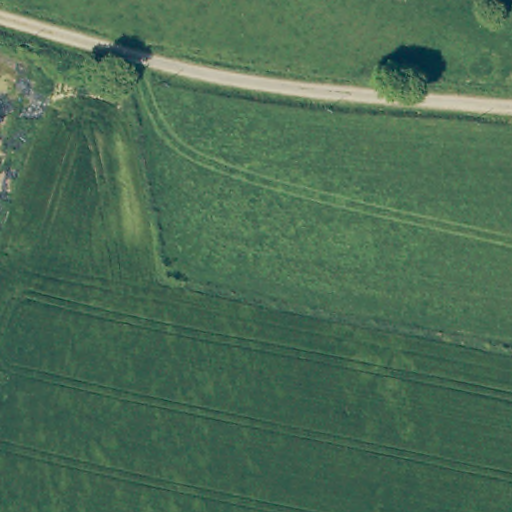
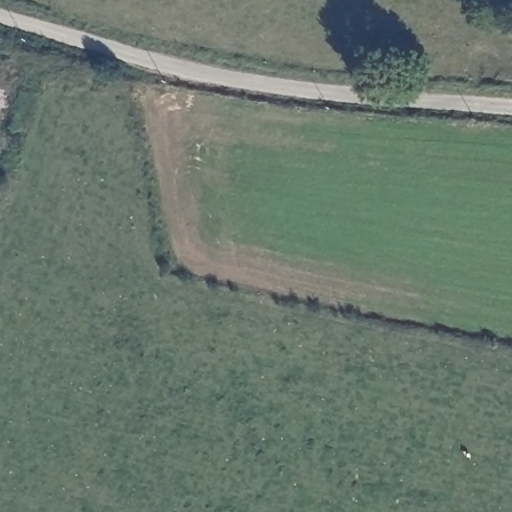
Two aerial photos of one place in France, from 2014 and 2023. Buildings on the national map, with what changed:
[]

